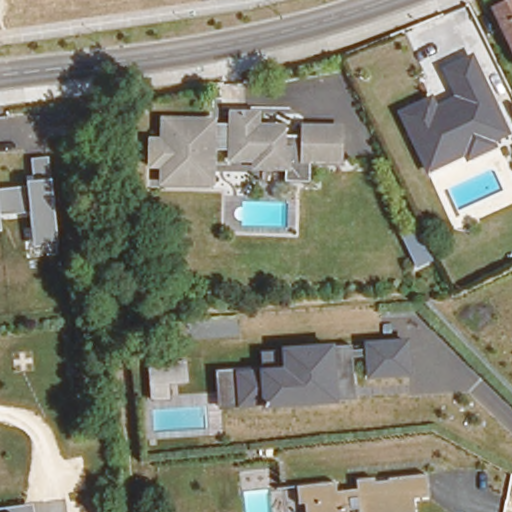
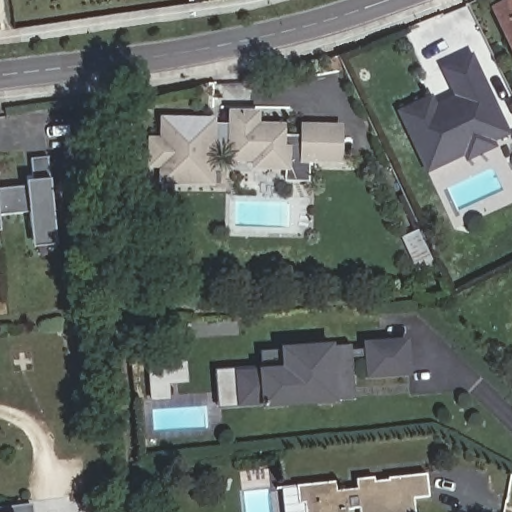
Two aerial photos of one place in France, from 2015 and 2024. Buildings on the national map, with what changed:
unchanged [(512,55),(494,14),(512,5),(512,55)]
unchanged [(508,135),(495,142),(498,149),(465,163),(463,159),(425,176),(394,112),(431,95),(435,106),(454,96),(442,70),(470,54),(508,135)]
unchanged [(286,183),(253,182),(254,170),(254,162),(230,161),(230,151),(212,151),(211,167),(204,166),(204,185),(161,184),(161,167),(150,167),(151,142),(164,143),(164,121),(213,123),(212,134),(222,134),(223,128),(231,129),(232,116),(257,116),(257,129),(283,130),(282,140),(303,140),(303,130),(340,131),(339,165),(308,164),(308,184),(286,183)]
unchanged [(56,246),(33,248),(28,214),(0,216),(0,189),(23,188),(23,182),(35,181),(32,160),(48,158),(56,246)]
unchanged [(2,232),(0,232),(0,223),(2,232)]
unchanged [(237,370),(261,369),(266,369),(265,354),(286,353),(285,348),(336,345),(351,344),(352,352),(353,351),(367,351),(366,342),(410,339),(413,377),(370,381),(367,359),(353,361),(356,399),(338,400),(339,406),(266,412),(265,405),(240,407),(220,409),(216,371),(237,370)]
unchanged [(171,385),(172,402),(153,404),(150,362),(188,360),(190,384),(171,385)]
unchanged [(336,482),(337,492),(360,489),(359,478),(376,477),(376,483),(390,482),(389,478),(429,475),(431,498),(415,499),(416,512),(362,512),(362,508),(351,509),(351,512),(307,512),(307,503),(299,504),(297,486),(336,482)]
unchanged [(37,505),(38,512),(0,512),(0,510),(37,505)]

